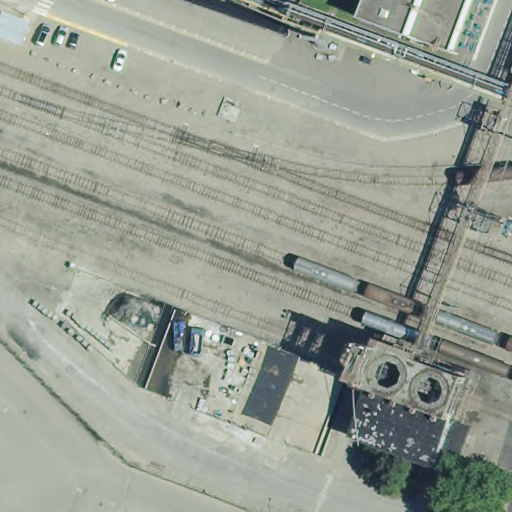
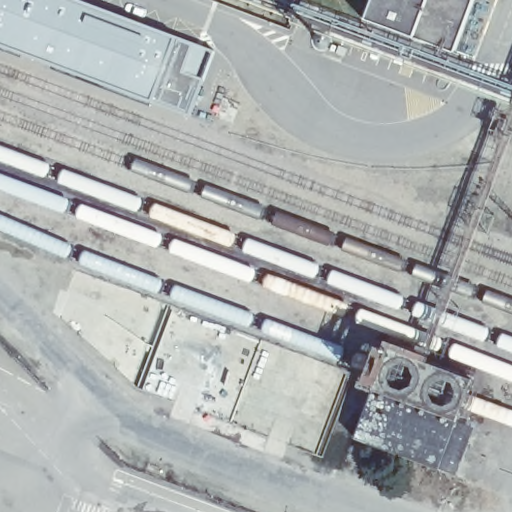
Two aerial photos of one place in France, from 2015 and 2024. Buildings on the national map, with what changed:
new [(200,79),(186,115),(150,102),(0,45),(0,0),(74,0),(174,37),(192,45),(181,72),(200,79)]
unchanged [(363,15),(368,0),(477,0),(461,46),(363,15)]
unchanged [(353,438),(358,426),(373,391),(367,390),(360,388),(372,346),(381,348),(388,350),(390,346),(390,341),(430,354),(425,361),(472,376),(470,380),(455,422),(475,428),(460,474),(440,470),(353,438)]

